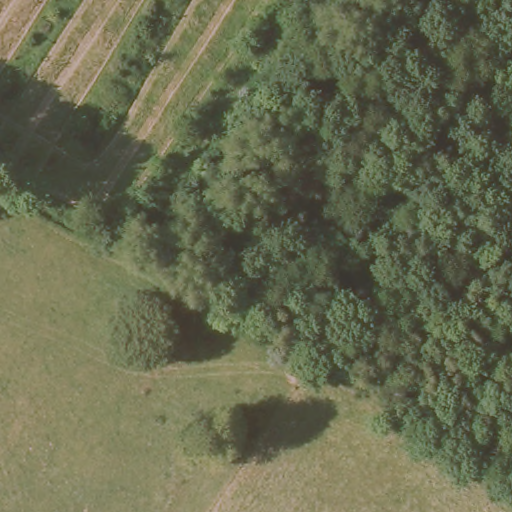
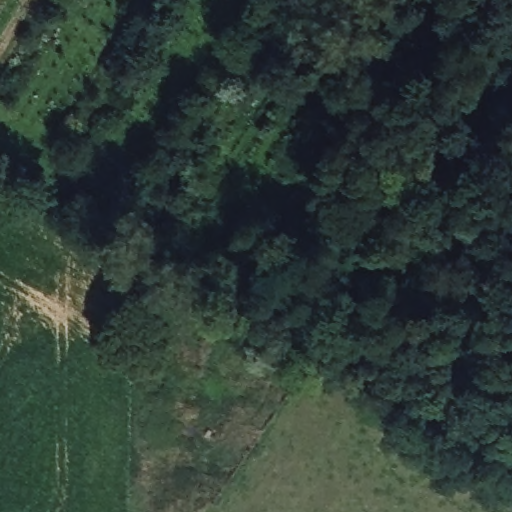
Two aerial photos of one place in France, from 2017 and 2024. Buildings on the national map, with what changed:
unchanged [(82,126),(82,146),(67,146),(66,128),(82,126)]

